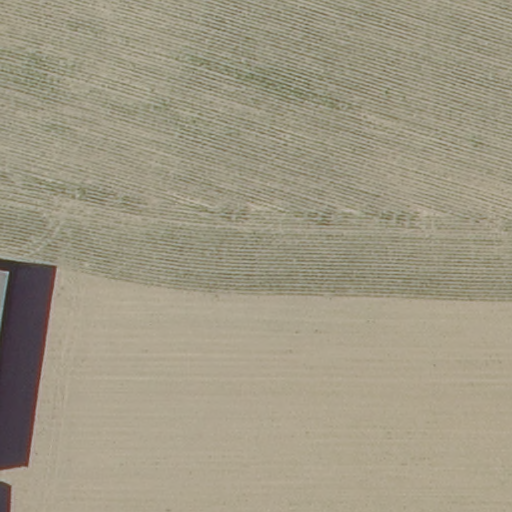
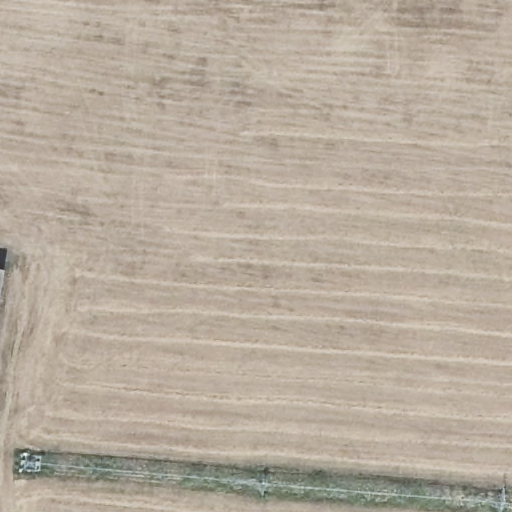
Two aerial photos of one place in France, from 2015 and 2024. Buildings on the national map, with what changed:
unchanged [(10,271),(0,342),(0,269),(10,271)]

